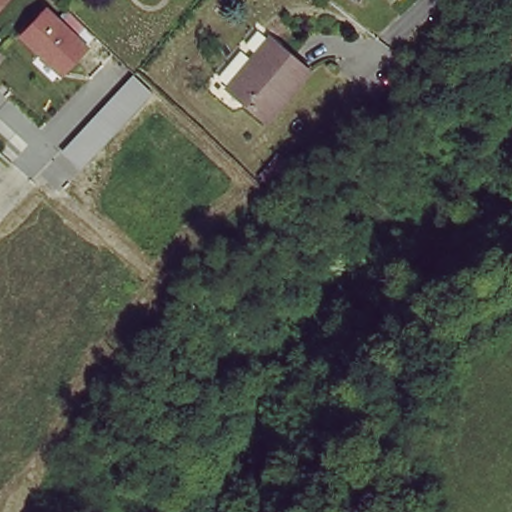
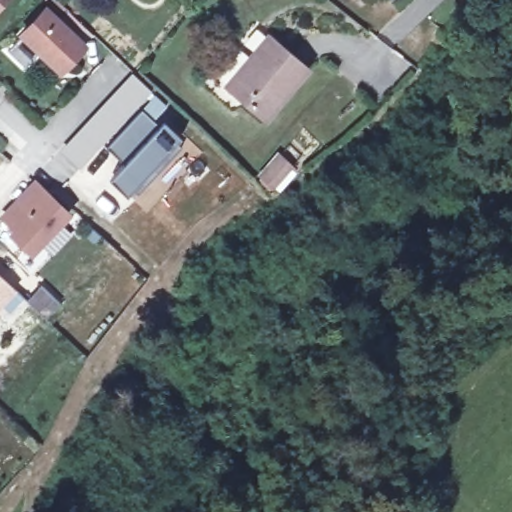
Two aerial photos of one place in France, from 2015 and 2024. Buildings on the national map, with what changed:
unchanged [(0,5),(0,0),(5,0),(0,5)]
unchanged [(87,45),(60,74),(20,34),(46,6),(87,45)]
unchanged [(264,116),(228,84),(270,36),(306,68),(264,116)]
unchanged [(151,93),(81,166),(63,149),(132,74),(151,93)]
demolished [(205,100),(193,115),(180,102),(193,87),(205,100)]
new [(133,190),(126,197),(110,180),(124,165),(107,147),(143,111),(160,127),(165,122),(181,138),(177,143),(183,148),(138,195),(133,190)]
new [(7,234),(11,230),(0,218),(0,216),(35,179),(73,215),(31,257),(7,234)]
new [(0,275),(17,292),(0,309),(0,275)]

